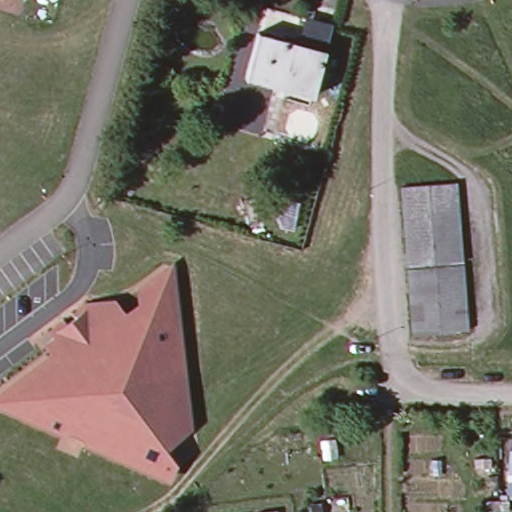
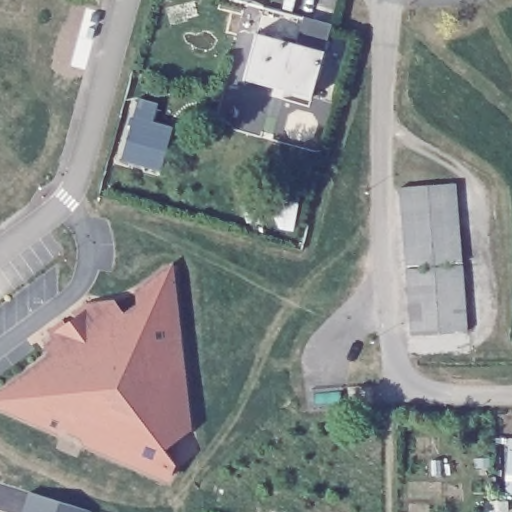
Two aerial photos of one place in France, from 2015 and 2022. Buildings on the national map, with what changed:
unchanged [(243,75),(257,28),(307,43),(313,17),(332,22),(325,48),(312,95),(243,75)]
new [(134,116),(175,127),(163,171),(122,160),(134,116)]
unchanged [(405,239),(405,225),(403,212),(402,198),(402,186),(429,184),(457,182),(457,195),(458,209),(460,221),(460,235),(462,248),(462,261),(435,263),(407,265),(407,252),(405,239)]
unchanged [(257,194),(262,215),(247,219),(242,197),(257,194)]
unchanged [(410,294),(408,279),(408,268),(436,266),(463,264),(464,276),(465,290),(466,302),(467,316),(468,329),(441,331),(412,333),(411,320),(410,306),(410,294)]
unchanged [(82,439),(85,434),(64,426),(62,430),(0,403),(0,396),(42,367),(52,334),(65,324),(67,327),(77,320),(75,317),(87,307),(117,304),(118,317),(140,314),(138,294),(165,274),(172,277),(192,439),(167,445),(172,462),(165,475),(82,439)]
new [(90,512),(24,512),(30,493),(90,512)]

